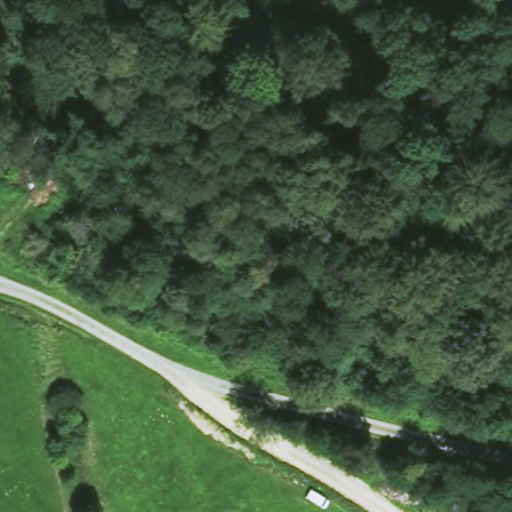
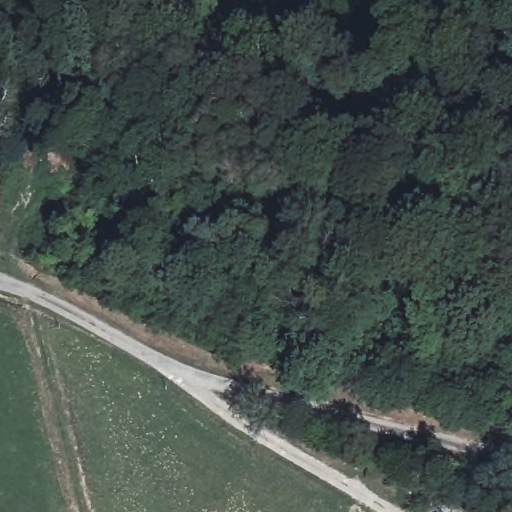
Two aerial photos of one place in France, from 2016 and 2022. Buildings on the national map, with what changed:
[]

